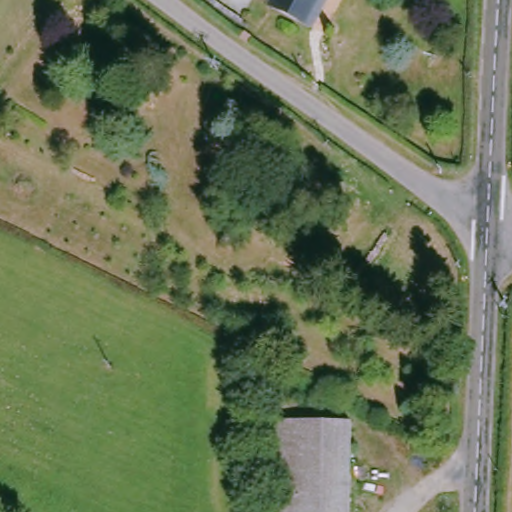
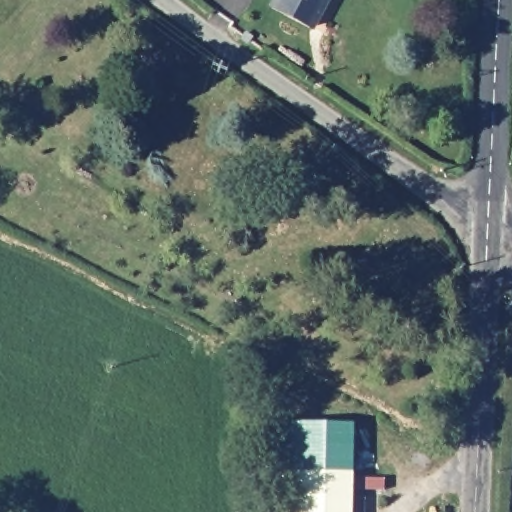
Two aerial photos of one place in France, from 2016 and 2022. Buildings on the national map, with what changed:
unchanged [(275,0),(328,0),(313,27),(274,2),(275,0)]
unchanged [(284,424),(354,429),(350,512),(279,512),(284,424)]

